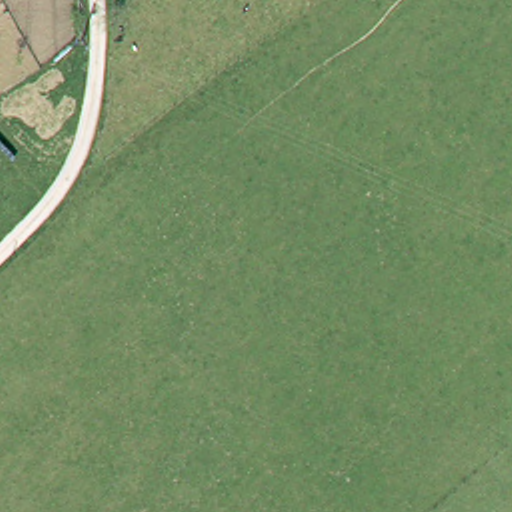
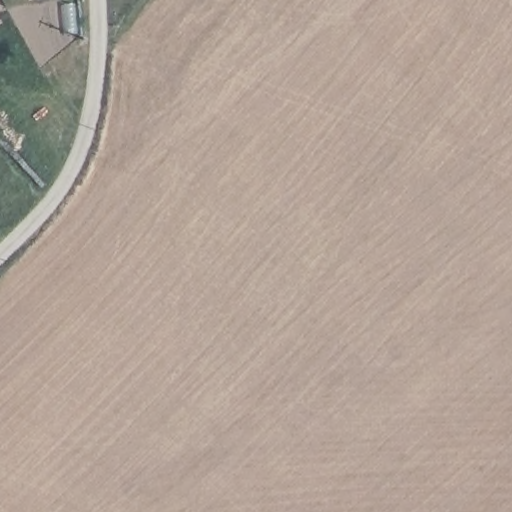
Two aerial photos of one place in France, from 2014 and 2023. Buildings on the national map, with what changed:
[]

